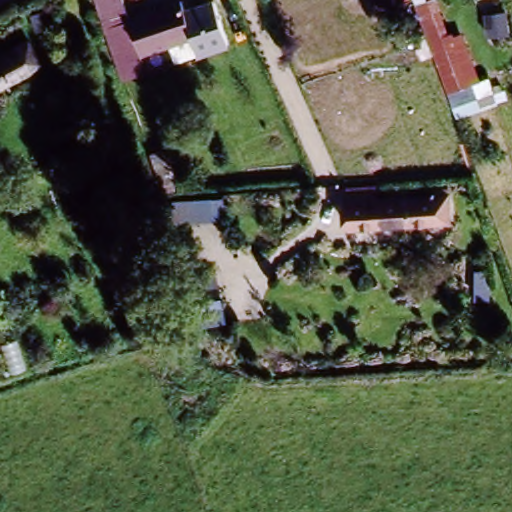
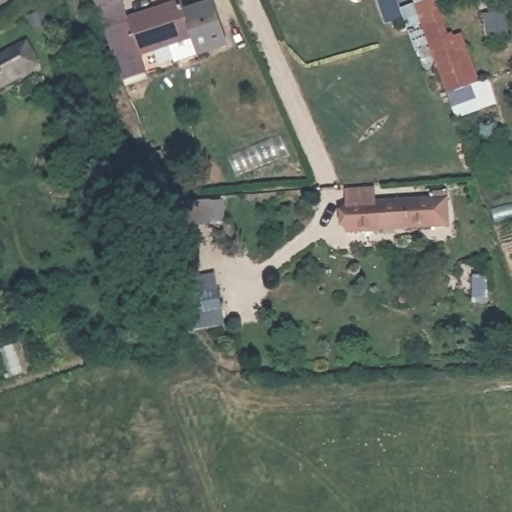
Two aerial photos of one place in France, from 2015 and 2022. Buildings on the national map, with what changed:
unchanged [(97,19),(91,0),(118,0),(122,11),(97,19)]
unchanged [(434,0),(448,39),(462,35),(486,106),(454,116),(419,3),(432,0),(434,0)]
unchanged [(177,3),(195,59),(171,67),(167,53),(137,63),(144,81),(116,90),(97,34),(125,24),(124,22),(124,21),(177,3)]
unchanged [(0,87),(0,49),(22,37),(36,66),(0,87)]
unchanged [(342,226),(340,209),(349,203),(348,187),(377,184),(378,202),(448,197),(450,225),(349,233),(342,226)]
unchanged [(490,302),(473,302),(473,274),(490,274),(490,302)]

